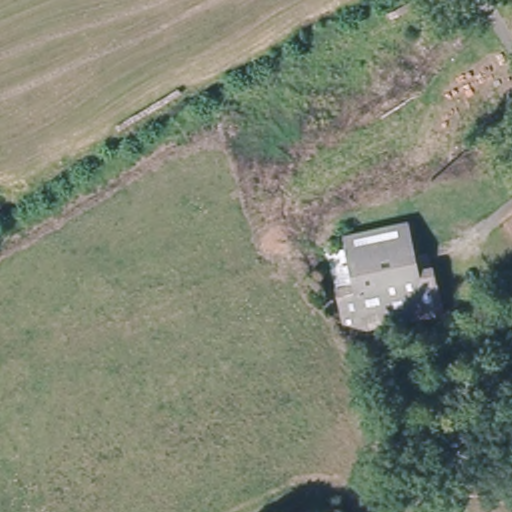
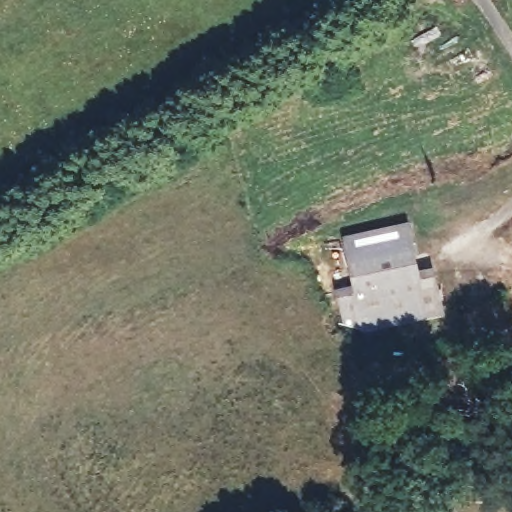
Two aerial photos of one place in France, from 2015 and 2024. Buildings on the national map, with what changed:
unchanged [(363,290),(352,242),(363,228),(413,217),(423,277),(363,290)]
unchanged [(444,273),(453,310),(371,325),(363,290),(423,277),(444,273)]

